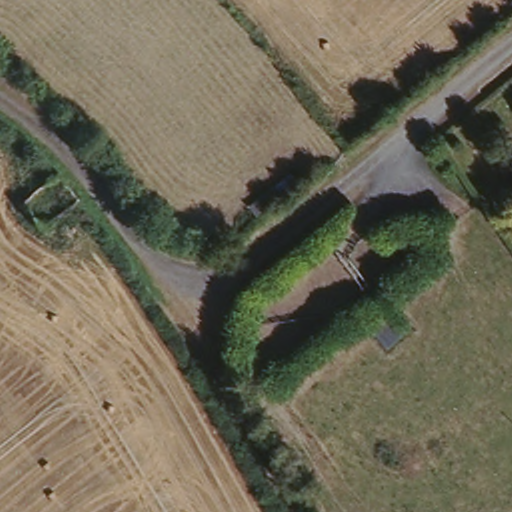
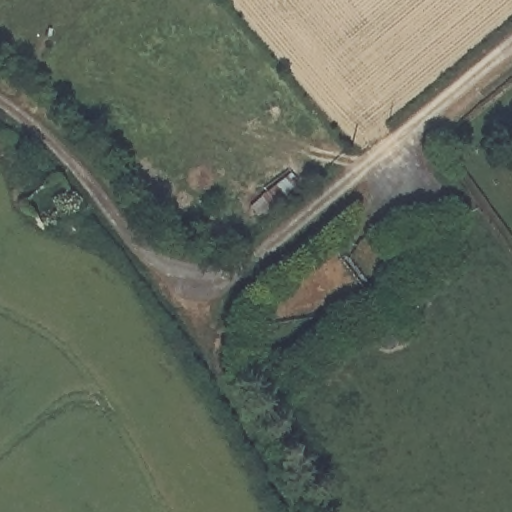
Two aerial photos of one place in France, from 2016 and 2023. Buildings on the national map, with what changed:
unchanged [(34,216),(10,190),(47,159),(69,189),(34,216)]

